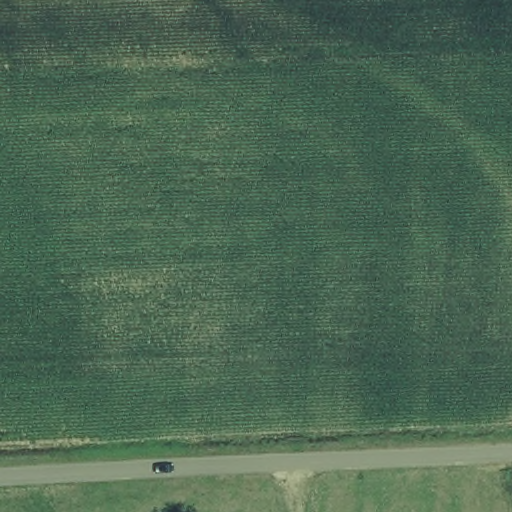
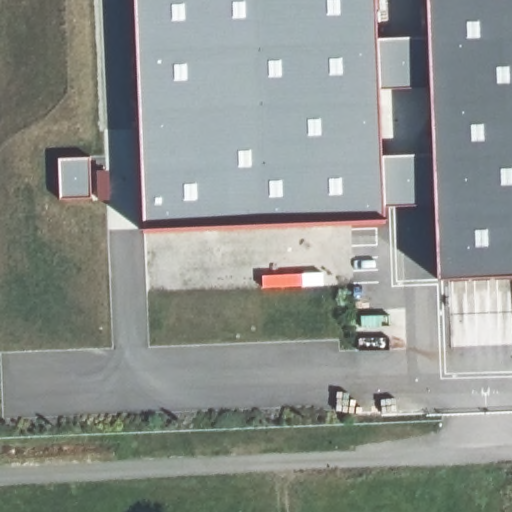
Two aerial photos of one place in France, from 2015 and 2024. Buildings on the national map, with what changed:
new [(436,205),(383,209),(382,224),(143,239),(131,0),(371,0),(372,36),(430,40),(430,88),(378,84),(382,158),(433,157),(436,205)]
unchanged [(439,279),(436,205),(433,157),(430,88),(430,40),(428,0),(512,0),(512,276),(439,279)]
new [(90,155),(90,197),(58,199),(57,156),(90,155)]

